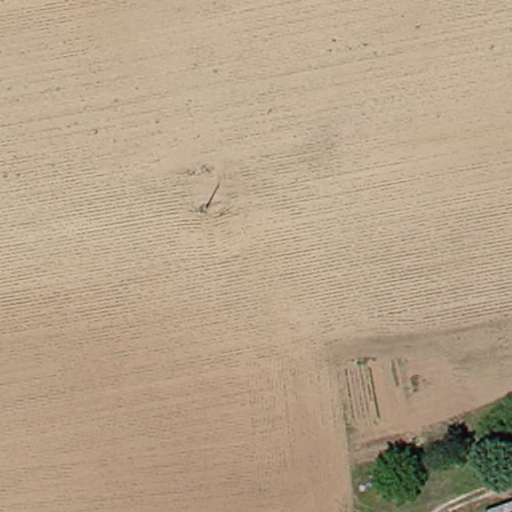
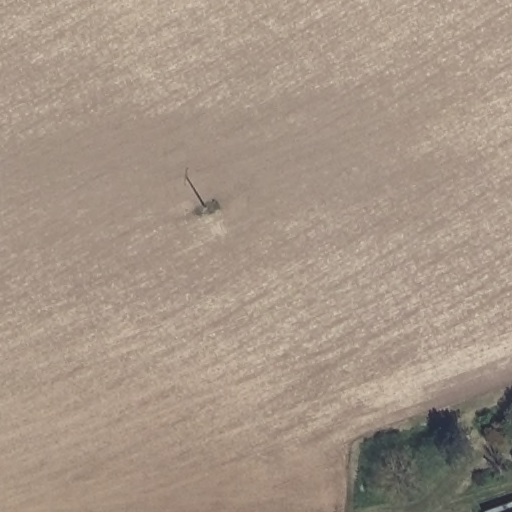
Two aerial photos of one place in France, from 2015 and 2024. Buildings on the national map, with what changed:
unchanged [(489,512),(512,504),(512,512),(489,512)]

